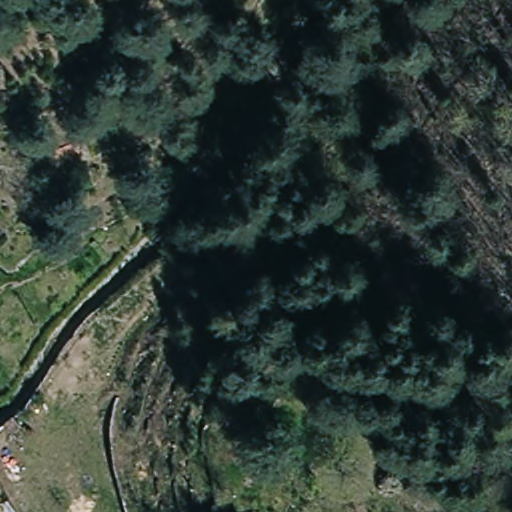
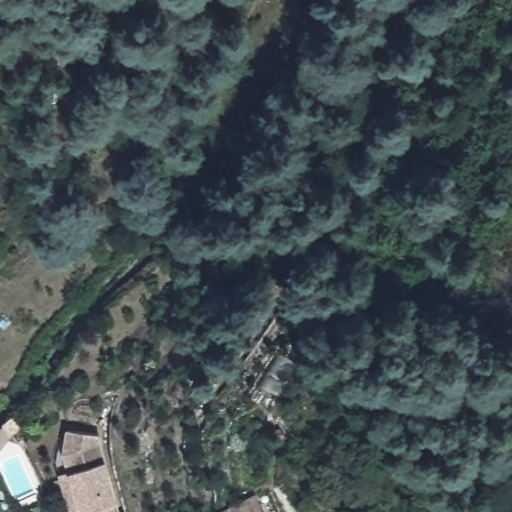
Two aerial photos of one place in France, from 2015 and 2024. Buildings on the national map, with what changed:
demolished [(25,413),(13,424),(3,413),(15,402),(25,413)]
unchanged [(39,428),(27,439),(17,428),(29,417),(39,428)]
new [(57,472),(65,470),(61,451),(64,430),(100,436),(99,446),(106,464),(116,501),(119,512),(67,512),(57,472)]
new [(227,506),(255,493),(263,512),(215,512),(215,511),(227,506)]

